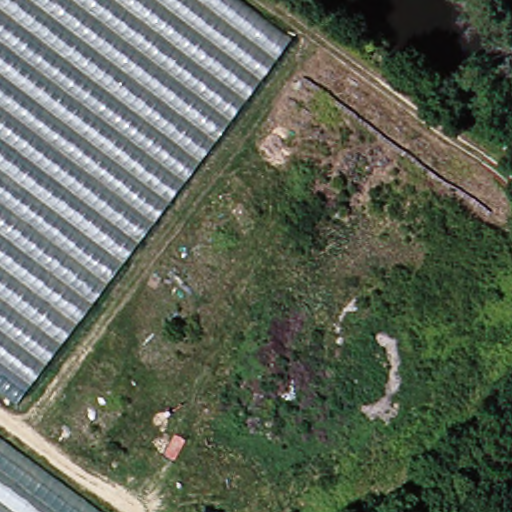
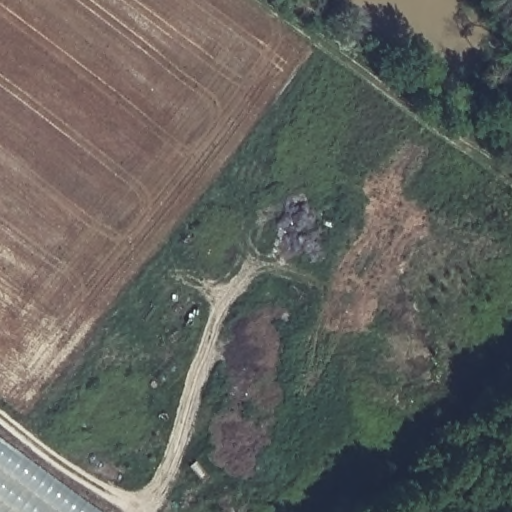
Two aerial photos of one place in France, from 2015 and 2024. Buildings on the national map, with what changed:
demolished [(0,0),(226,0),(279,39),(8,398),(0,392),(0,0)]
unchanged [(0,512),(0,448),(88,512),(0,512)]

